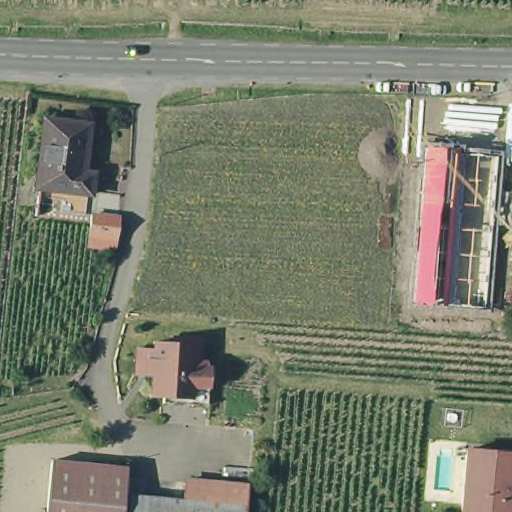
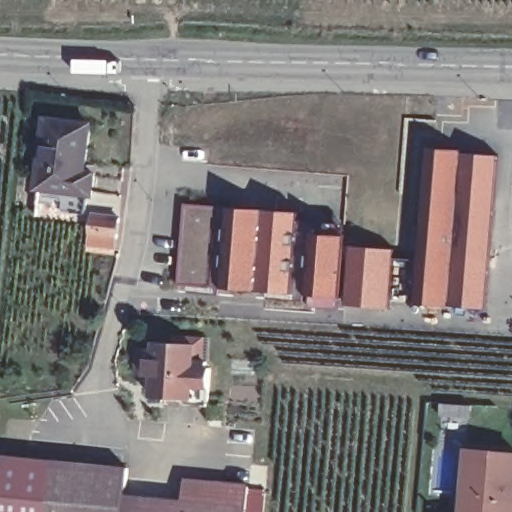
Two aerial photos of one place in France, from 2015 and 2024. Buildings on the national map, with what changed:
unchanged [(86,211),(63,209),(63,205),(64,193),(47,192),(45,198),(40,197),(40,184),(38,182),(47,114),(92,120),(85,167),(95,169),(92,190),(89,190),(87,208),(86,211)]
unchanged [(489,310),(411,305),(424,144),(504,150),(489,310)]
new [(342,296),(335,296),(337,309),(305,306),(305,302),(292,301),(292,292),(221,287),(220,295),(210,294),(211,286),(180,284),(186,200),(302,209),(301,221),(346,224),(342,296)]
unchanged [(92,229),(95,210),(122,212),(120,232),(119,243),(92,240),(92,229)]
new [(397,249),(393,307),(350,303),(355,246),(397,249)]
unchanged [(157,372),(142,372),(143,351),(151,345),(155,338),(205,337),(204,360),(220,362),(219,387),(200,387),(200,399),(157,392),(157,372)]
unchanged [(480,450),(512,453),(512,507),(475,503),(480,450)]
new [(53,512),(1,512),(7,453),(59,460),(53,512)]
unchanged [(59,460),(134,467),(130,503),(129,512),(53,512),(59,460)]
unchanged [(192,477),(254,482),(251,512),(226,512),(190,509),(192,477)]
unchanged [(130,503),(190,509),(189,512),(129,512),(130,503)]
unchanged [(512,512),(474,512),(475,503),(512,507),(512,512)]
unchanged [(226,512),(189,512),(190,509),(226,512)]

